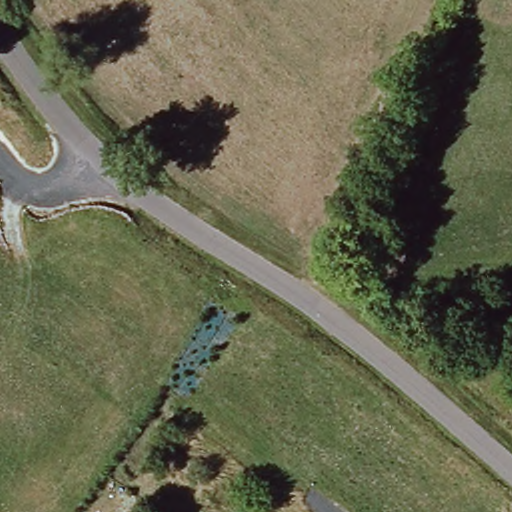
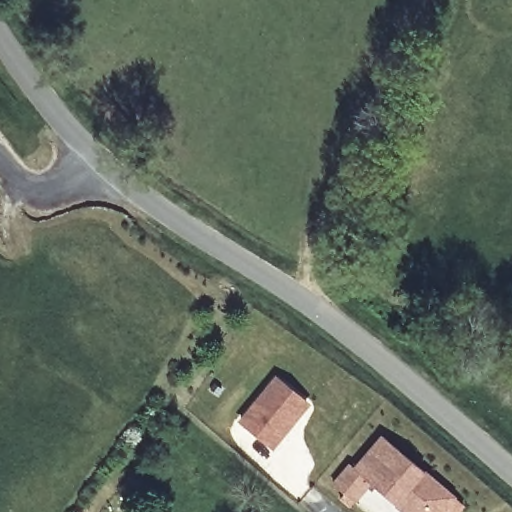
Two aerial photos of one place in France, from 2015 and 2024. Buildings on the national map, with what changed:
new [(278,378),(310,404),(300,415),(275,446),(243,420),(269,389),(278,378)]
new [(358,499),(337,482),(354,462),(359,466),(387,433),(458,494),(444,511),(443,512),(412,512),(375,480),(358,499)]

